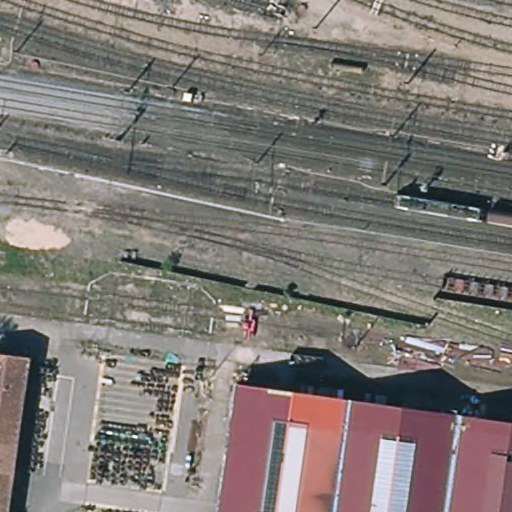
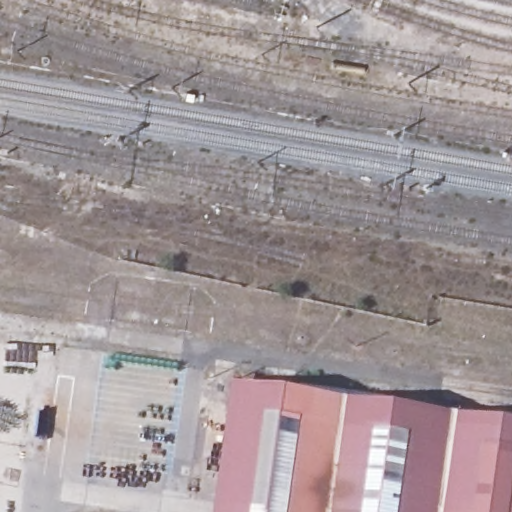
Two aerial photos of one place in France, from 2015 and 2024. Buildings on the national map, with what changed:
demolished [(30,361),(7,512),(0,512),(0,357),(30,361)]
unchanged [(512,422),(512,512),(222,512),(240,383),(512,422)]

